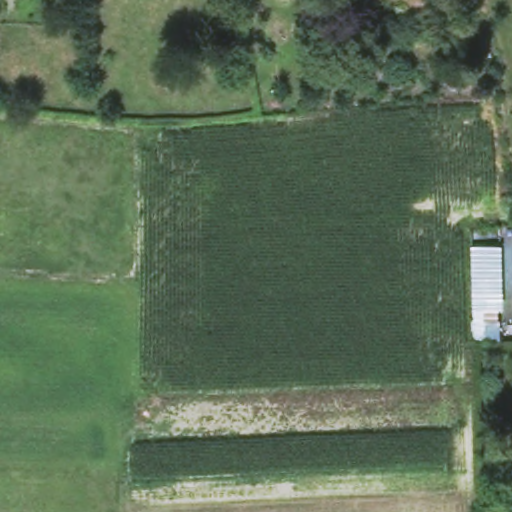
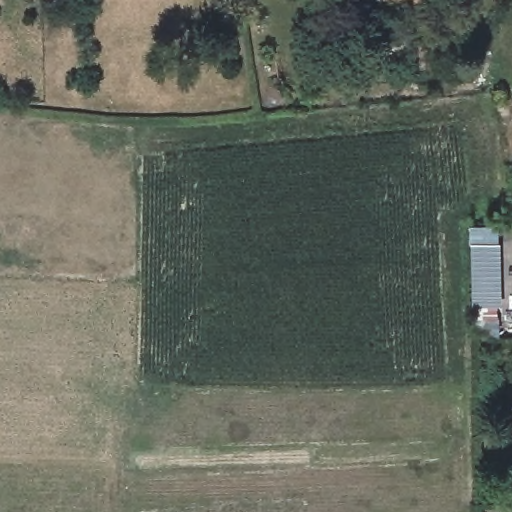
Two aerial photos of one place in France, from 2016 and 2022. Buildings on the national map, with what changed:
unchanged [(497,244),(498,304),(473,305),(471,244),(497,244)]

